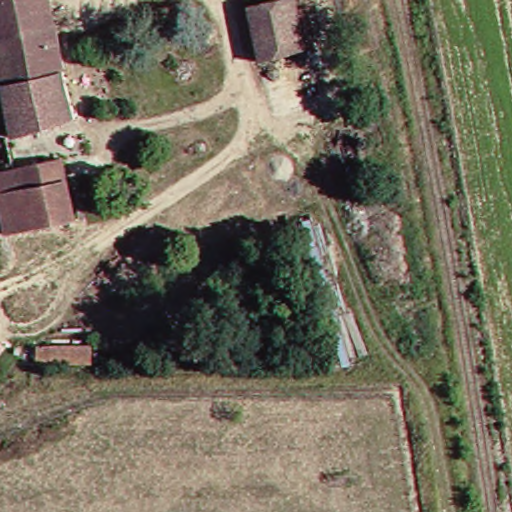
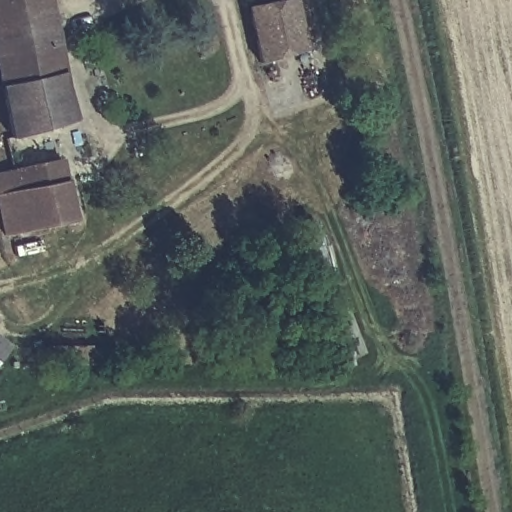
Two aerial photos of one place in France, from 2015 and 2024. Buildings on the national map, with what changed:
unchanged [(22,137),(5,57),(0,58),(0,0),(58,0),(82,118),(22,137)]
unchanged [(287,0),(298,0),(311,56),(265,66),(252,9),(287,0)]
unchanged [(3,232),(0,214),(0,185),(22,180),(16,152),(59,143),(75,219),(32,226),(3,232)]
unchanged [(8,343),(0,353),(0,337),(8,343)]
unchanged [(97,350),(97,363),(22,366),(20,350),(96,347),(97,350)]

